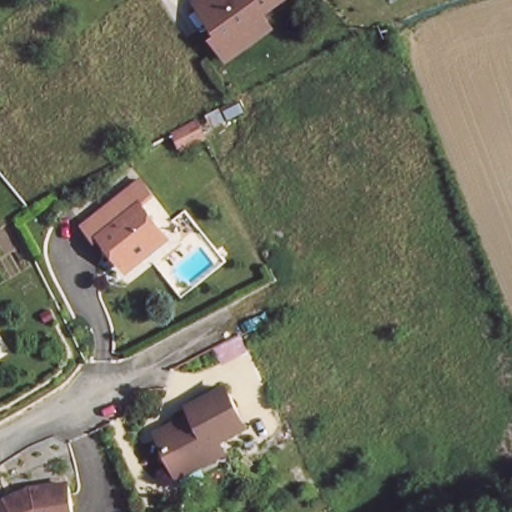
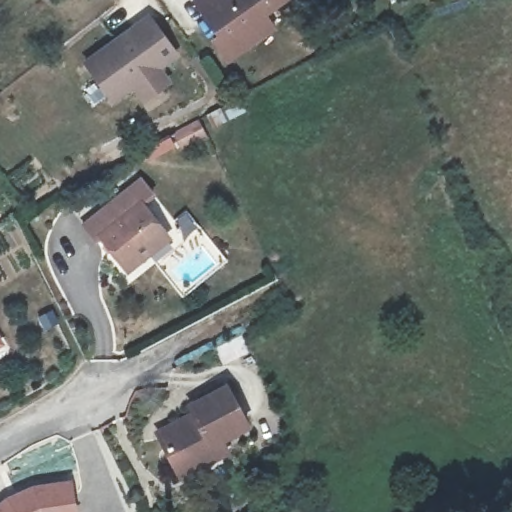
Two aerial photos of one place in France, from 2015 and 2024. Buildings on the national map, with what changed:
unchanged [(225,49),(220,42),(210,29),(215,25),(197,0),(265,0),(260,4),(270,17),(225,49)]
new [(112,105),(82,61),(149,14),(180,55),(162,68),(172,82),(142,104),(133,90),(112,105)]
unchanged [(197,126),(205,144),(167,140),(197,126)]
unchanged [(127,270),(102,238),(96,242),(85,229),(128,191),(139,182),(154,200),(143,208),(167,238),(127,270)]
unchanged [(177,480),(157,434),(193,417),(190,410),(228,393),(247,432),(222,445),(227,457),(177,480)]
unchanged [(30,482),(65,480),(69,512),(0,512),(0,494),(1,493),(30,482)]

